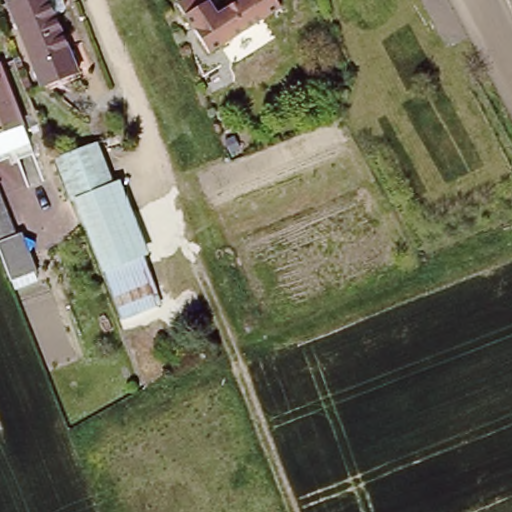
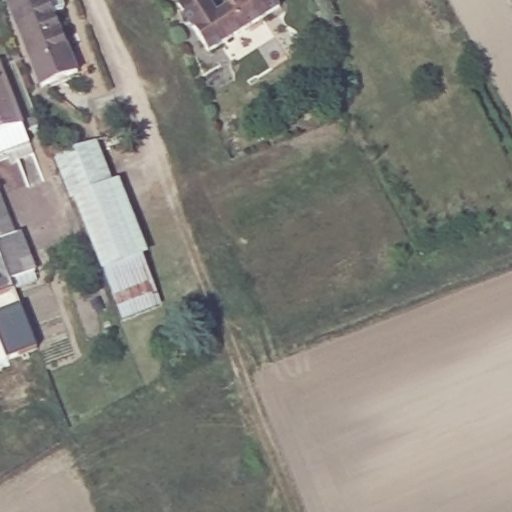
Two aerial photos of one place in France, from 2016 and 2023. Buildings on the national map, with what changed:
unchanged [(63,8),(60,14),(52,17),(75,74),(38,88),(2,0),(59,0),(63,8)]
unchanged [(179,0),(212,0),(218,9),(232,0),(278,0),(280,2),(209,48),(179,0)]
unchanged [(30,151),(13,156),(11,153),(0,156),(0,75),(30,151)]
unchanged [(75,212),(70,200),(67,200),(53,157),(92,143),(113,197),(75,212)]
unchanged [(16,229),(22,227),(38,266),(12,276),(0,248),(0,190),(16,229)]
unchanged [(158,316),(119,330),(75,212),(113,197),(158,316)]
new [(0,293),(0,253),(14,288),(0,293)]
new [(21,305),(38,347),(19,354),(7,359),(0,343),(0,313),(2,312),(21,305)]

